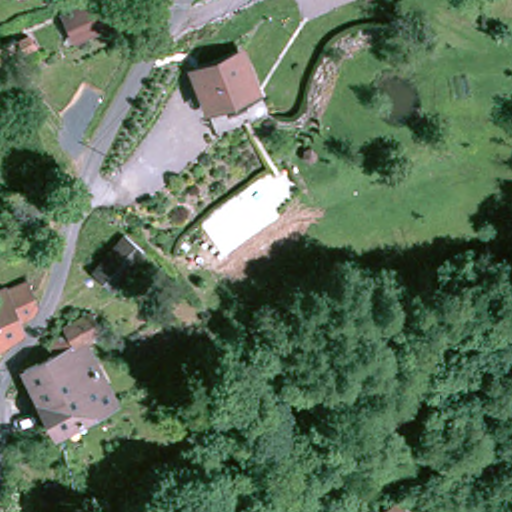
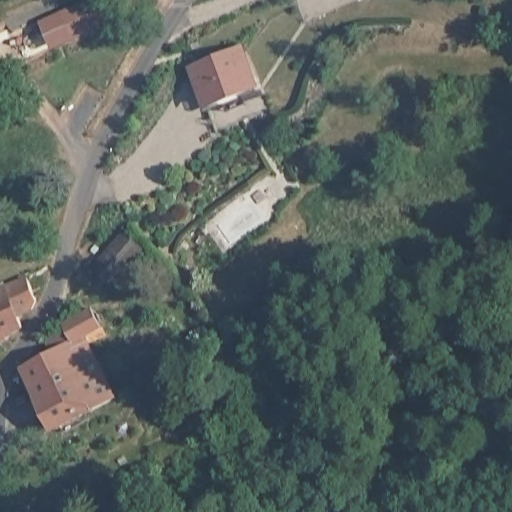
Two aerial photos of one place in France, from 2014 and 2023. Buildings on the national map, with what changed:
unchanged [(357,1),(356,0),(359,0),(357,1)]
unchanged [(61,21),(70,17),(106,1),(115,21),(80,38),(70,42),(61,21)]
unchanged [(22,34),(26,44),(17,47),(13,37),(22,34)]
unchanged [(211,104),(197,71),(242,52),(256,85),(211,104)]
unchanged [(117,285),(98,268),(130,231),(148,249),(117,285)]
unchanged [(30,278),(38,301),(34,311),(18,317),(23,331),(0,342),(0,290),(30,278)]
unchanged [(77,345),(65,325),(92,308),(104,328),(77,345)]
unchanged [(42,414),(22,375),(77,345),(90,366),(97,362),(103,372),(95,376),(112,406),(54,437),(42,414)]
unchanged [(377,512),(396,501),(403,512),(377,512)]

